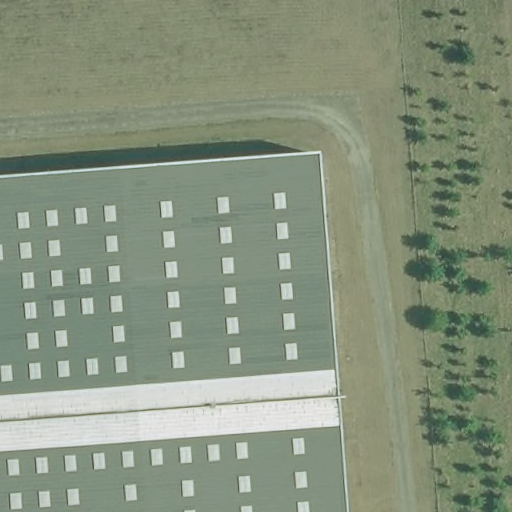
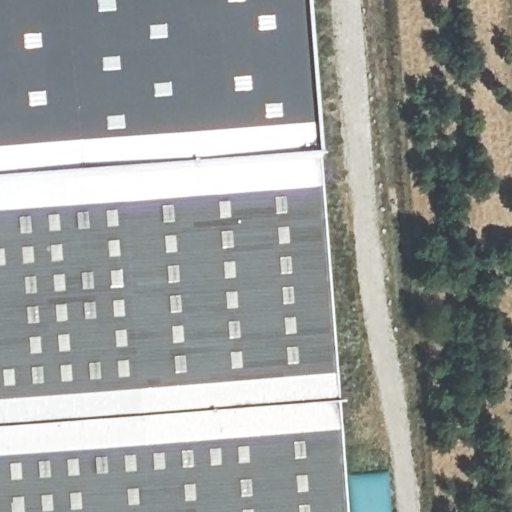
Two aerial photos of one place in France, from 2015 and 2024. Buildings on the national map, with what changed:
new [(0,177),(0,0),(302,0),(310,153),(0,177)]
unchanged [(335,494),(336,512),(0,512),(0,177),(310,153),(335,494)]

